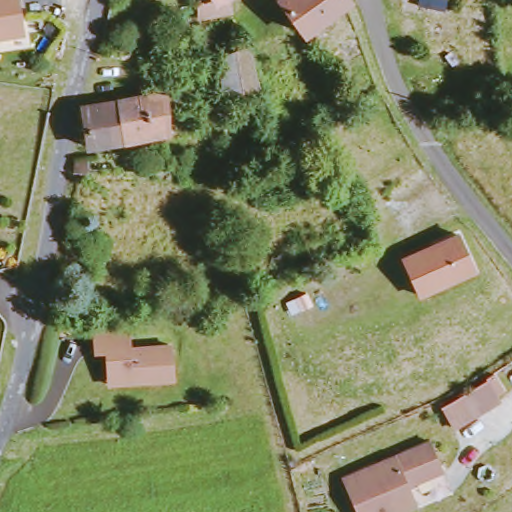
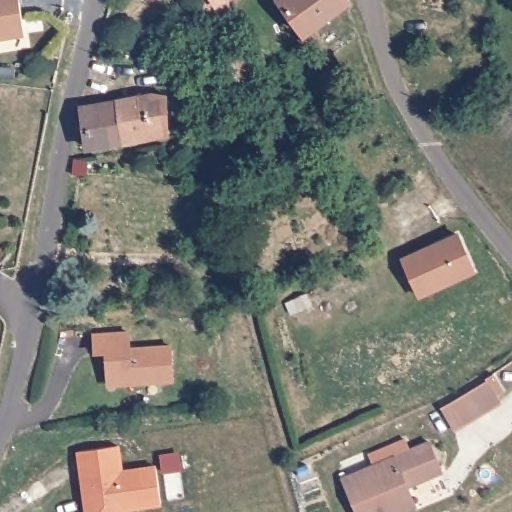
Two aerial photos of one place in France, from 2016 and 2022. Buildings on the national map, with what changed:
unchanged [(0,40),(0,0),(19,0),(21,39),(0,40)]
unchanged [(229,0),(231,11),(203,14),(203,5),(208,0),(229,0)]
unchanged [(277,0),(347,0),(348,1),(345,3),(301,34),(276,0),(277,0)]
unchanged [(220,98),(219,69),(228,52),(245,46),(252,85),(220,98)]
unchanged [(144,99),(144,94),(153,94),(161,134),(120,144),(115,104),(144,99)]
unchanged [(115,104),(120,144),(86,151),(80,109),(115,104)]
unchanged [(478,273),(421,298),(403,260),(459,234),(478,273)]
unchanged [(108,378),(106,356),(96,356),(95,339),(129,337),(131,353),(171,349),(175,384),(133,387),(108,388),(108,378)]
unchanged [(506,398),(463,428),(448,406),(492,378),(506,398)]
unchanged [(444,474),(411,489),(419,507),(406,512),(357,512),(344,481),(431,443),(444,474)]
new [(76,451),(120,446),(123,469),(156,464),(161,505),(130,509),(130,512),(84,512),(76,451)]

